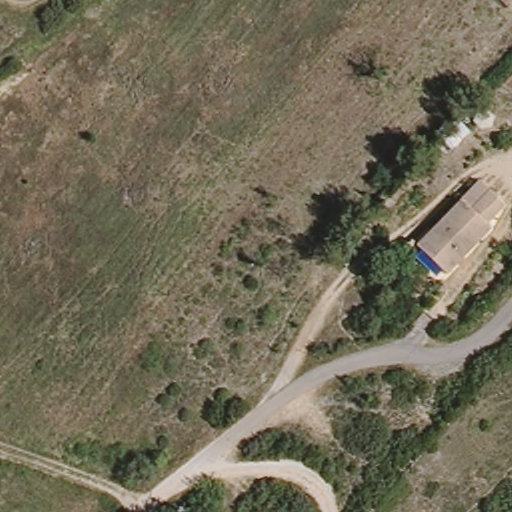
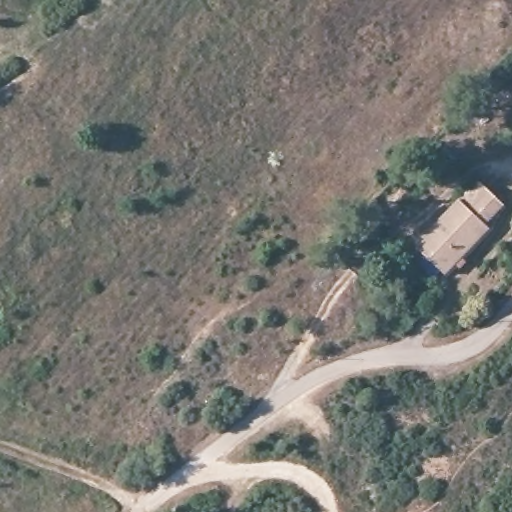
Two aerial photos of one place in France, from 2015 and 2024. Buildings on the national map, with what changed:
unchanged [(453,276),(425,245),(470,202),(486,186),(509,210),(492,227),(498,234),(453,276)]

